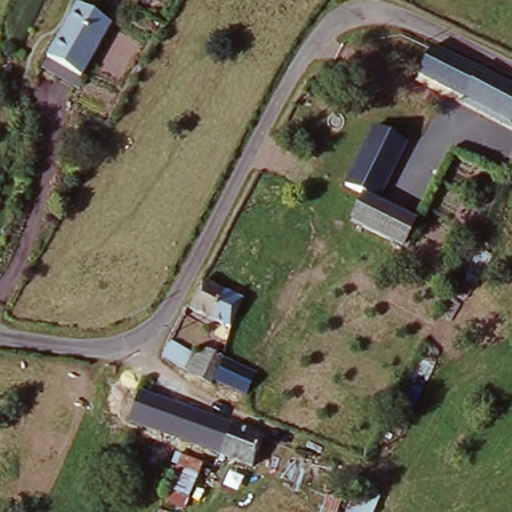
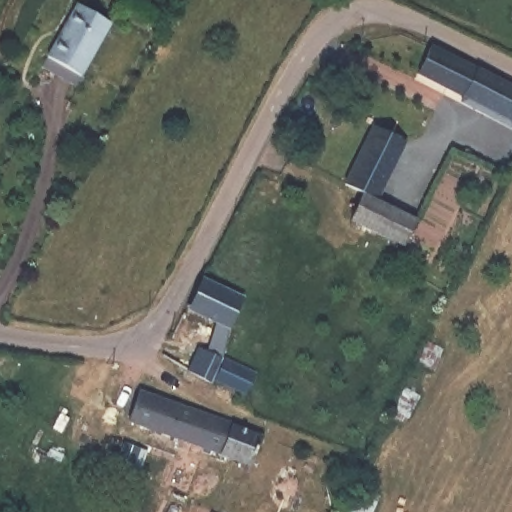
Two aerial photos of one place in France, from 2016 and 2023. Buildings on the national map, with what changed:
unchanged [(82,10),(114,30),(83,83),(48,62),(82,10)]
unchanged [(496,88),(512,96),(512,124),(421,79),(436,48),(500,80),(496,88)]
unchanged [(381,203),(368,196),(345,187),(373,126),(409,144),(381,203)]
unchanged [(368,196),(419,223),(405,250),(353,222),(368,196)]
unchanged [(202,277),(245,301),(230,335),(184,310),(202,277)]
unchanged [(204,382),(188,376),(181,369),(173,361),(165,348),(194,363),(203,347),(223,357),(256,373),(244,399),(210,384),(204,382)]
unchanged [(180,443),(131,424),(113,416),(125,384),(195,409),(180,443)]
unchanged [(240,467),(194,448),(190,459),(175,454),(180,443),(195,409),(254,432),(271,438),(255,473),(240,467)]
unchanged [(188,512),(187,512),(164,502),(178,457),(208,471),(188,512)]
unchanged [(304,512),(289,507),(306,461),(355,480),(343,512),(304,512)]

